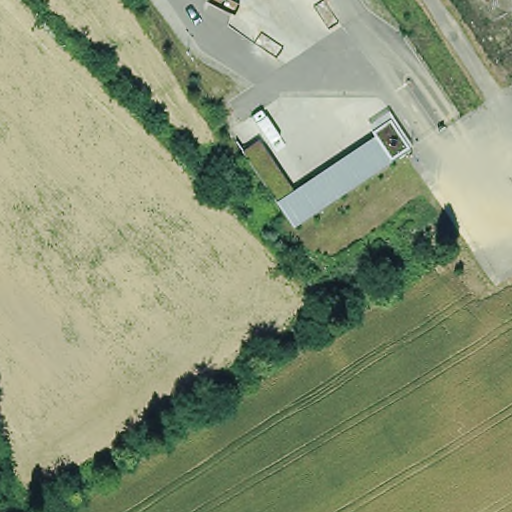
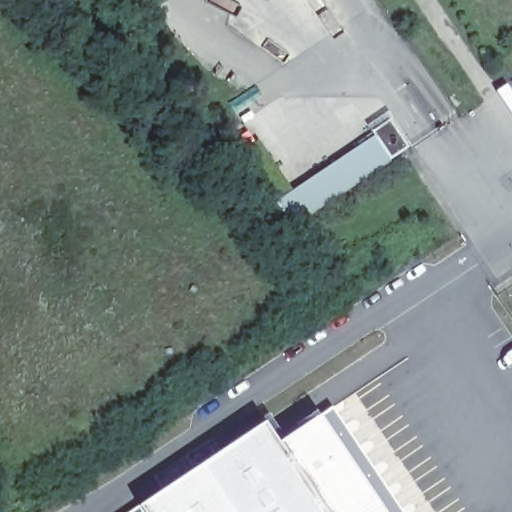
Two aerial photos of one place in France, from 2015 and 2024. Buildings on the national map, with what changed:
unchanged [(277,202),(243,151),(261,141),(294,191),(375,137),(373,132),(369,126),(391,112),(413,146),(410,147),(391,160),(392,162),(294,227),(277,202)]
new [(366,477),(387,512),(325,512),(278,441),(322,412),(366,477)]
new [(278,441),(325,512),(142,512),(138,505),(264,421),(278,441)]
new [(401,512),(387,512),(366,477),(374,472),(401,512)]
new [(142,512),(127,512),(138,505),(142,512)]

